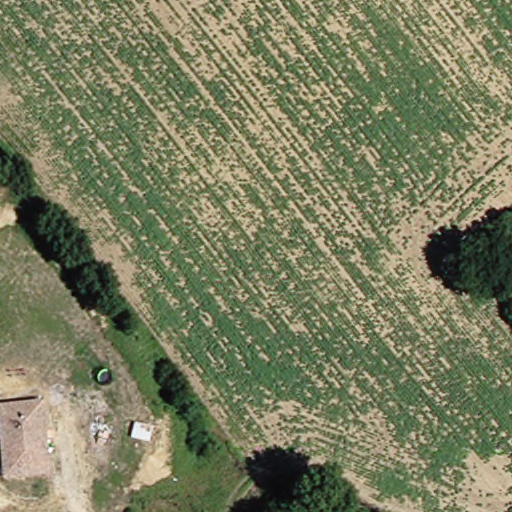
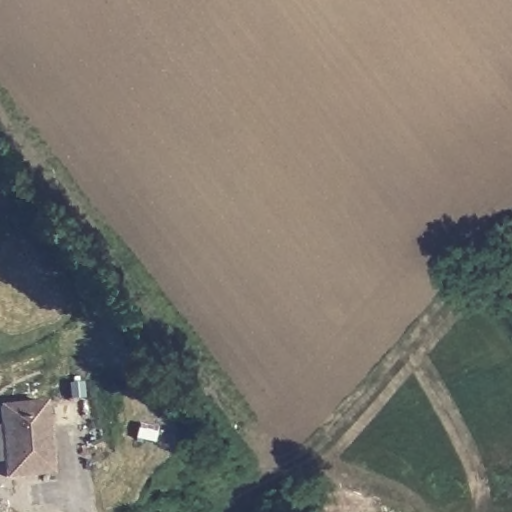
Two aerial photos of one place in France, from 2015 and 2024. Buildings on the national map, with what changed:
unchanged [(51,476),(8,481),(0,410),(43,406),(51,476)]

